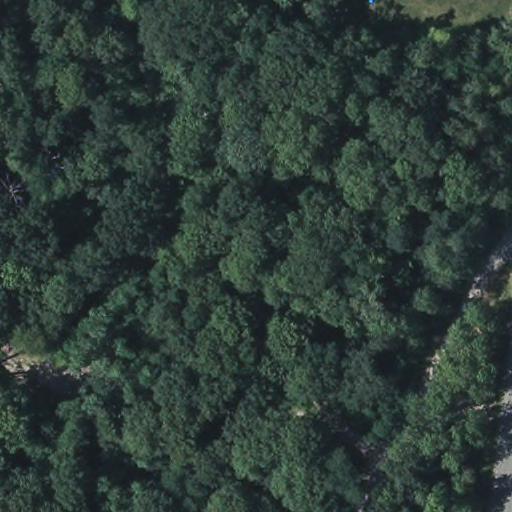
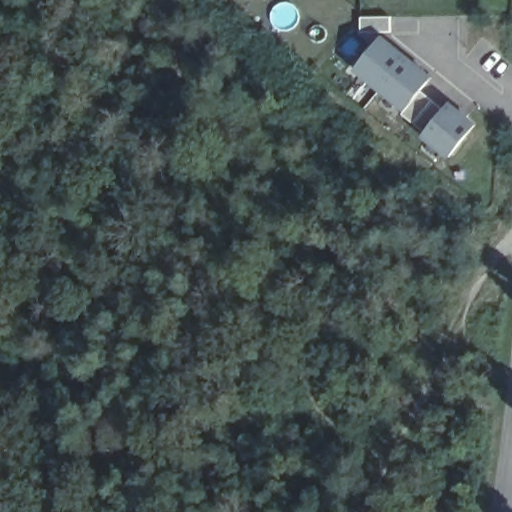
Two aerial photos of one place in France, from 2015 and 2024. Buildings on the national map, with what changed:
new [(406,112),(353,71),(381,36),(432,77),(406,112)]
new [(450,160),(422,139),(451,103),(476,124),(450,160)]

